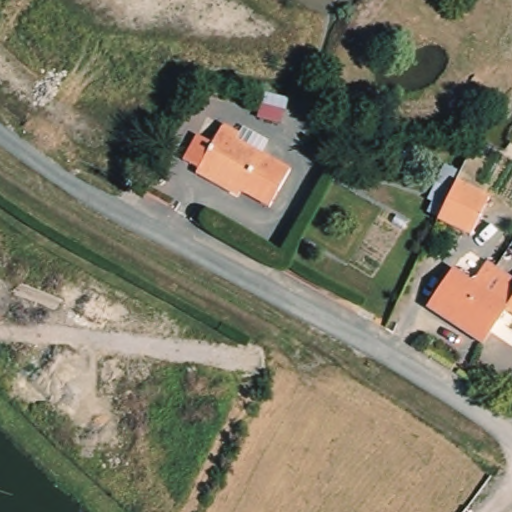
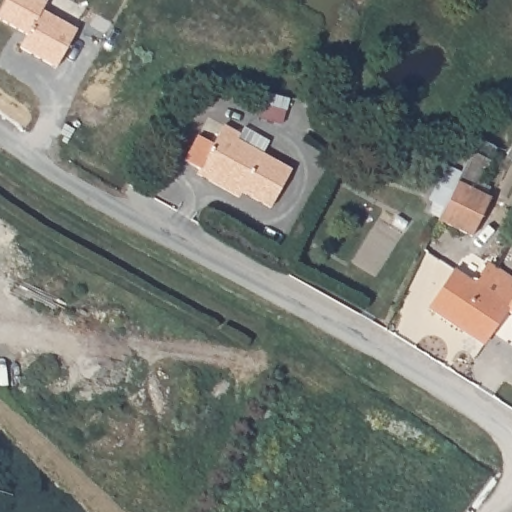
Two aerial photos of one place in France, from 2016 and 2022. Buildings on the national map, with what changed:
new [(34,0),(51,11),(45,20),(79,41),(54,77),(20,55),(28,42),(0,24),(0,22),(14,0),(34,0)]
unchanged [(231,194),(196,175),(199,171),(184,162),(197,137),(212,146),(224,127),(241,136),(237,141),(292,172),(271,210),(242,194),(240,199),(231,194)]
unchanged [(492,200),(486,211),(471,237),(439,219),(437,223),(427,217),(432,209),(427,206),(437,187),(453,194),(460,182),(492,200)]
unchanged [(492,265),(512,278),(512,314),(507,310),(481,344),(426,307),(454,266),(480,283),(492,265)]

